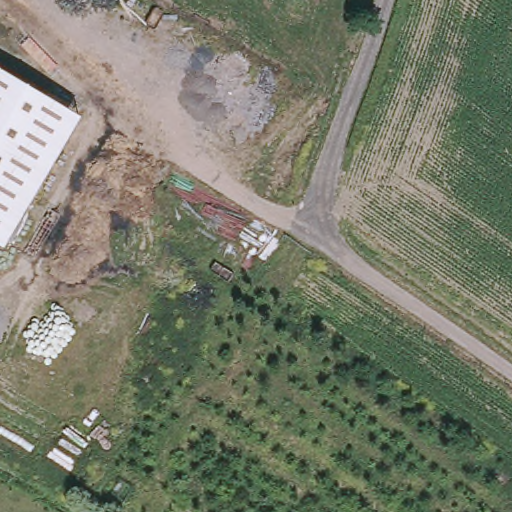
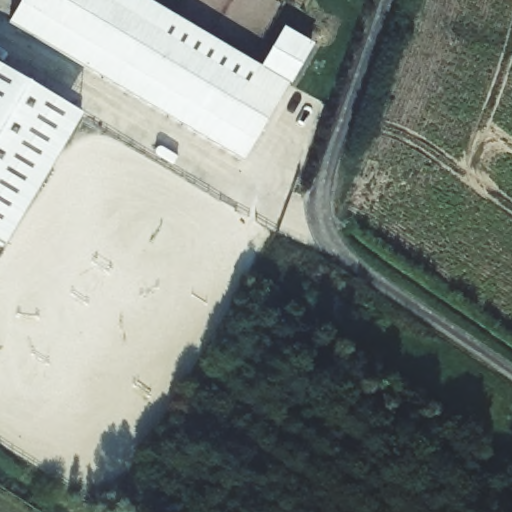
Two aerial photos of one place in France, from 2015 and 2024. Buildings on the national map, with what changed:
new [(142,0),(259,68),(282,29),(312,49),(242,163),(9,25),(24,0),(142,0)]
unchanged [(7,247),(0,243),(0,71),(79,113),(7,247)]

